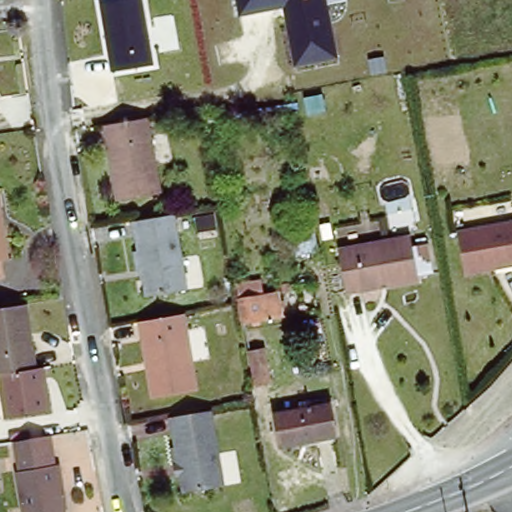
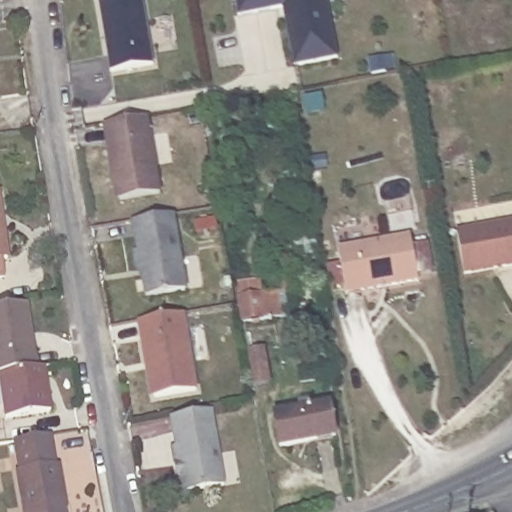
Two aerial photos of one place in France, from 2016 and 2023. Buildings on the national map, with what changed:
unchanged [(120,0),(141,0),(152,62),(110,71),(97,4),(120,0)]
unchanged [(326,0),(337,57),(295,65),(283,7),(240,16),(237,0),(326,0)]
unchanged [(155,192),(116,199),(113,184),(110,185),(103,149),(107,148),(104,129),(103,125),(142,118),(143,122),(155,192)]
unchanged [(2,261),(6,279),(0,281),(0,211),(10,259),(2,261)]
unchanged [(186,284),(145,291),(144,281),(143,281),(140,264),(138,264),(135,249),(139,249),(137,231),(138,231),(136,218),(174,211),(186,284)]
unchanged [(507,267),(462,274),(455,232),(512,223),(512,266),(507,267)]
unchanged [(342,294),(333,249),(407,236),(415,282),(372,289),(342,294)]
unchanged [(253,288),(255,301),(270,299),(273,324),(240,329),(235,291),(253,288)]
unchanged [(38,367),(45,365),(51,410),(4,417),(0,390),(0,306),(29,302),(38,367)]
unchanged [(179,311),(192,385),(150,392),(143,357),(140,358),(133,319),(179,311)]
unchanged [(257,386),(250,352),(248,339),(262,337),(264,349),(270,384),(257,386)]
unchanged [(335,439),(282,448),(277,414),(300,410),(300,404),(311,402),(312,408),(330,405),(335,439)]
unchanged [(210,408),(222,481),(182,488),(177,460),(175,460),(172,443),(175,443),(172,427),(175,426),(172,414),(210,408)]
unchanged [(17,477),(20,477),(14,441),(50,435),(55,468),(60,467),(67,505),(59,506),(60,512),(23,512),(17,477)]

